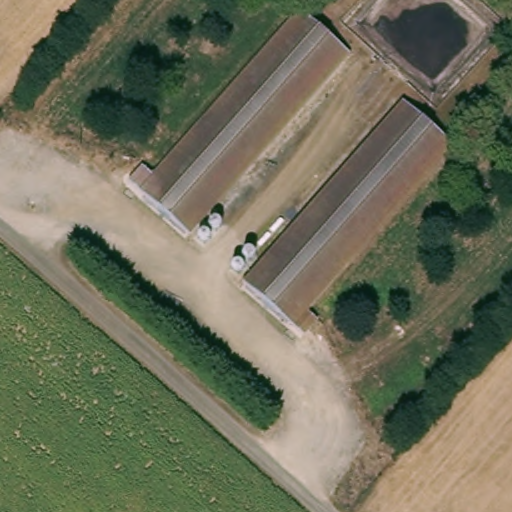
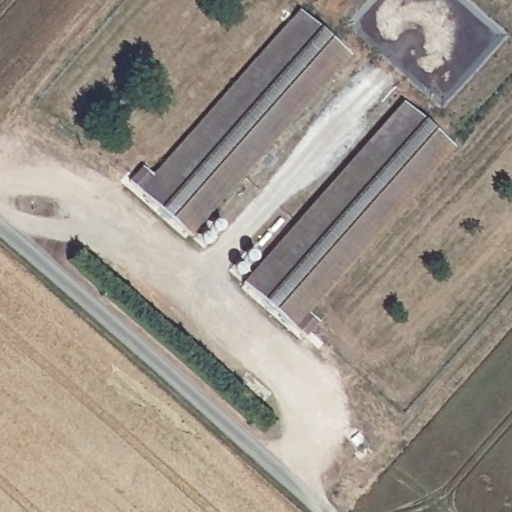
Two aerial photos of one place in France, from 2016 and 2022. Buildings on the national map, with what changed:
unchanged [(350,55),(191,231),(129,177),(142,163),(152,172),(300,10),(350,55)]
unchanged [(453,144),(306,308),(318,318),(305,334),(244,280),(405,101),(453,144)]

